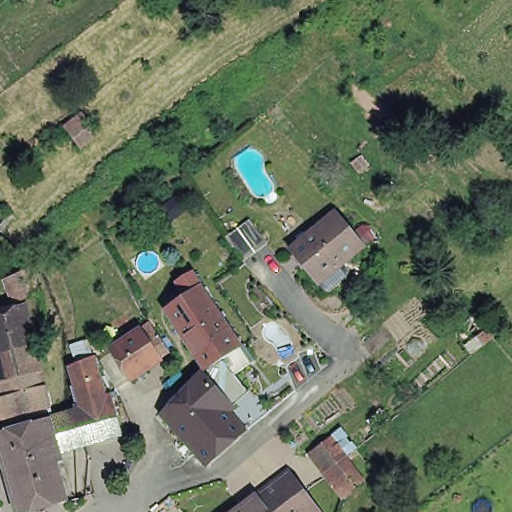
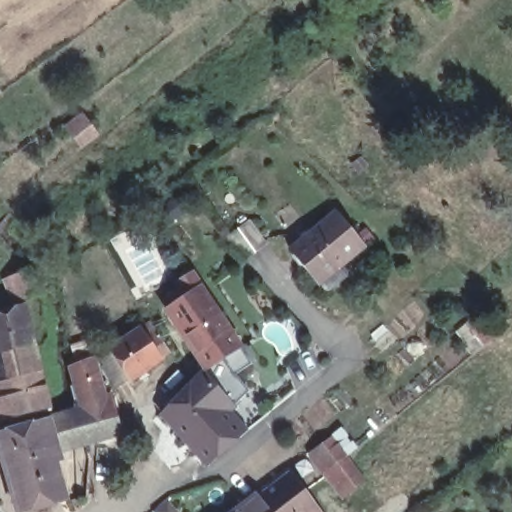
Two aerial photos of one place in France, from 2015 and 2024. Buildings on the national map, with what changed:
unchanged [(90,125),(73,139),(63,127),(81,113),(90,125)]
unchanged [(341,269),(324,284),(319,284),(314,277),(284,242),(329,204),(359,239),(335,259),(341,265),(341,269)]
unchanged [(268,241),(244,260),(226,236),(250,218),(268,241)]
unchanged [(44,292),(42,292),(14,301),(4,276),(20,252),(34,265),(41,283),(44,292)]
unchanged [(156,408),(191,372),(199,363),(193,352),(162,305),(168,301),(162,292),(176,285),(171,279),(186,269),(196,283),(234,341),(235,343),(244,358),(228,369),(236,378),(240,376),(246,382),(243,385),(229,396),(220,404),(239,426),(202,460),(198,456),(156,408)]
unchanged [(0,292),(0,289),(1,291),(0,292)]
unchanged [(0,351),(0,349),(0,310),(29,303),(39,343),(2,351),(0,351)]
unchanged [(143,369),(146,373),(139,379),(136,375),(129,378),(109,348),(140,327),(149,321),(163,342),(154,348),(161,358),(143,369)]
unchanged [(2,351),(39,343),(45,368),(9,379),(2,351)]
unchanged [(108,396),(85,403),(80,404),(78,395),(74,385),(77,384),(80,383),(76,365),(76,363),(97,356),(108,396)]
unchanged [(0,397),(13,395),(9,379),(45,368),(54,405),(18,416),(5,419),(0,397)]
unchanged [(114,394),(125,433),(83,445),(63,450),(54,418),(79,411),(81,410),(80,404),(85,403),(108,396),(114,394)]
unchanged [(66,459),(59,461),(70,500),(29,512),(23,512),(21,510),(0,439),(0,433),(54,418),(63,450),(66,459)]
unchanged [(330,466),(325,470),(312,453),(329,441),(342,458),(339,460),(358,485),(340,498),(324,477),(323,475),(331,469),(331,467),(330,466)]
unchanged [(264,512),(223,512),(284,466),(299,486),(264,512)]
unchanged [(299,486),(314,507),(318,512),(264,512),(299,486)]

